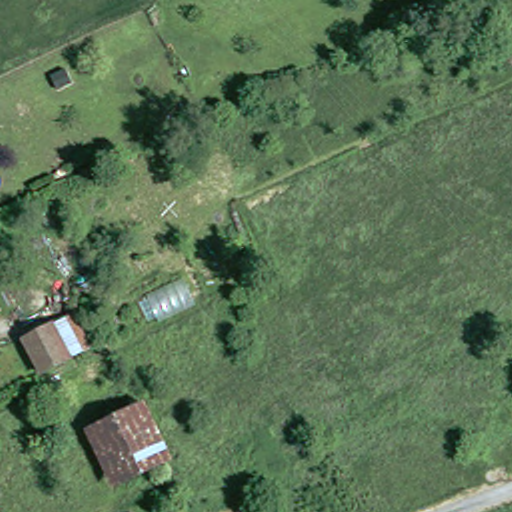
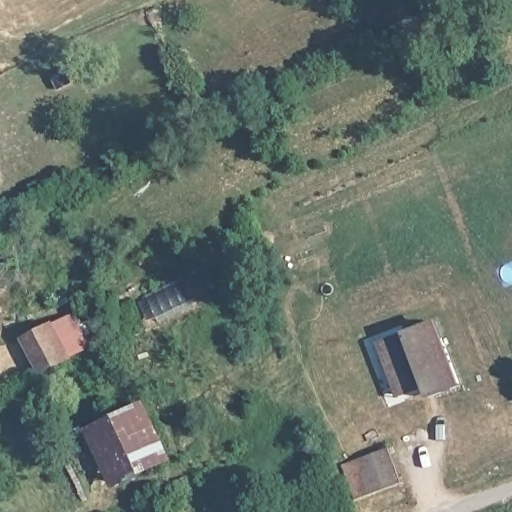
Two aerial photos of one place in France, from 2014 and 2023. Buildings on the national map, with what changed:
unchanged [(35,336),(63,319),(80,352),(53,367),(35,336)]
new [(423,385),(394,395),(374,340),(402,330),(403,332),(436,320),(459,383),(435,392),(427,395),(423,385)]
unchanged [(163,462),(126,480),(99,427),(134,408),(163,462)]
new [(389,448),(400,481),(356,497),(344,463),(389,448)]

